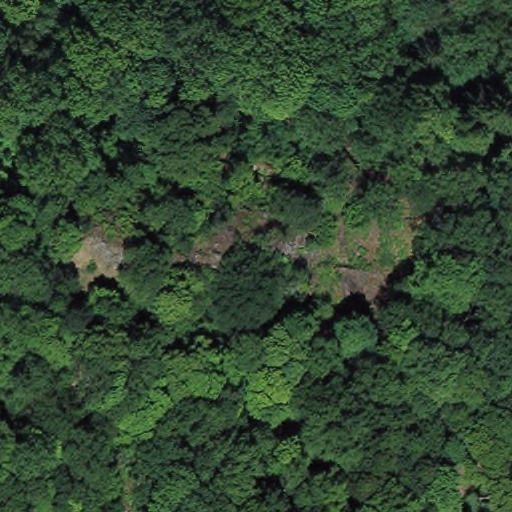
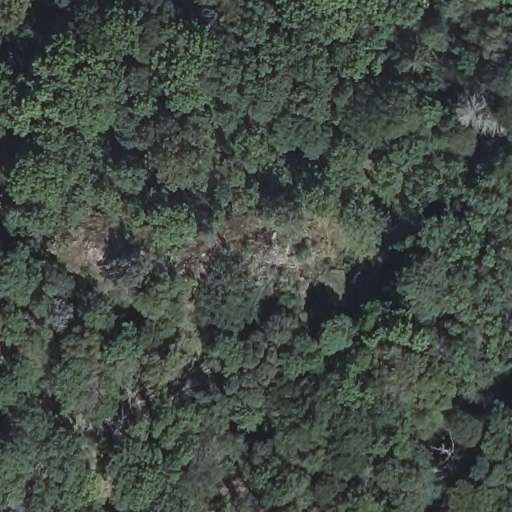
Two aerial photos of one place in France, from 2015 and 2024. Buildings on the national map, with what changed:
unchanged [(512,55),(512,79),(500,90),(460,54),(482,28),(512,55)]

